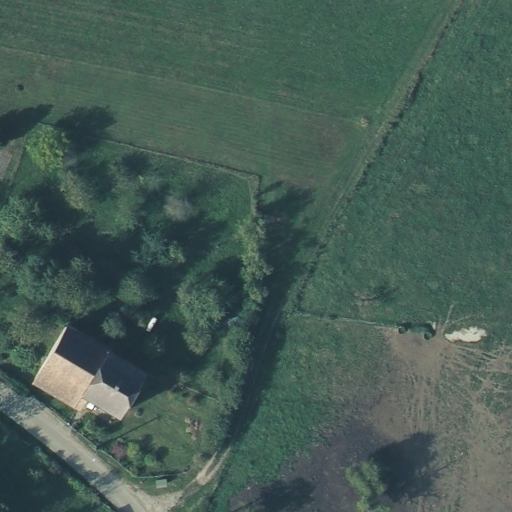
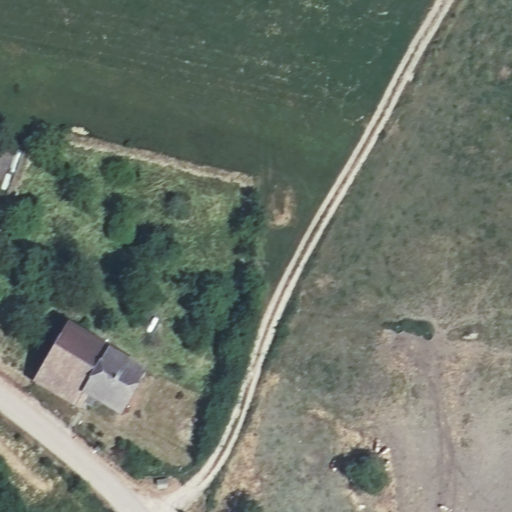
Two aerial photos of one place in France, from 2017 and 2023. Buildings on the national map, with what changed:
unchanged [(85,396),(76,409),(31,380),(65,327),(144,374),(118,418),(85,396)]

